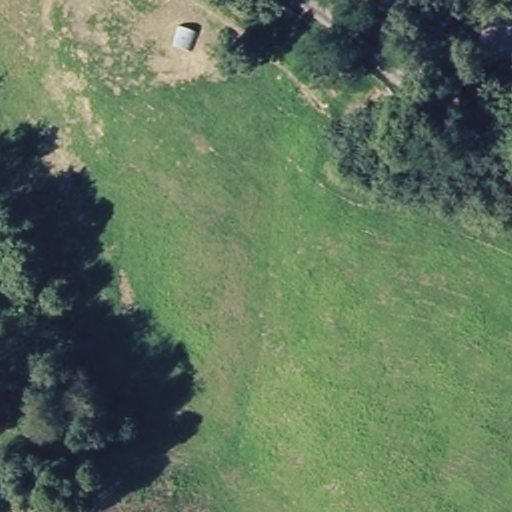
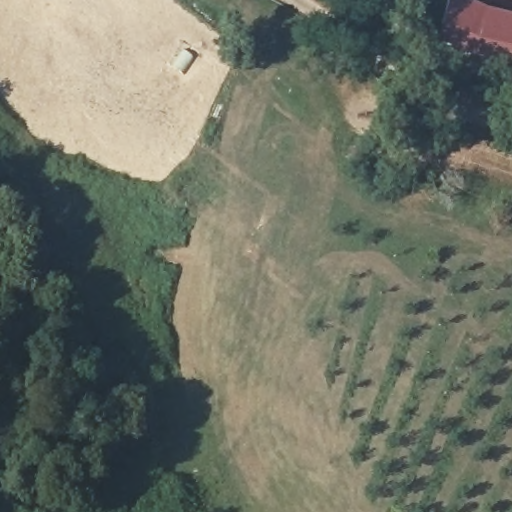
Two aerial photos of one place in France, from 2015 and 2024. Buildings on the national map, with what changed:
new [(453,0),(455,0),(512,15),(512,65),(437,43),(453,0)]
new [(512,4),(494,0),(512,0),(512,4)]

